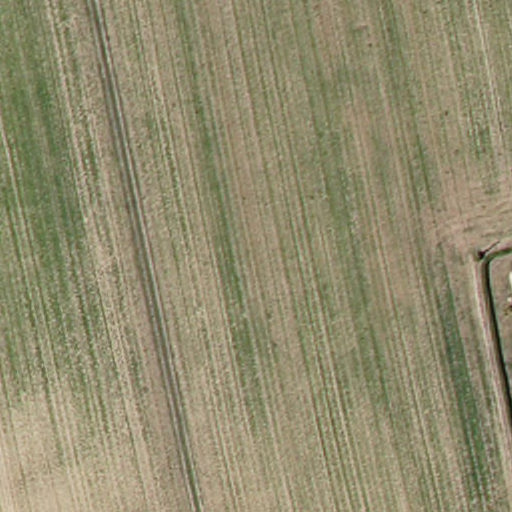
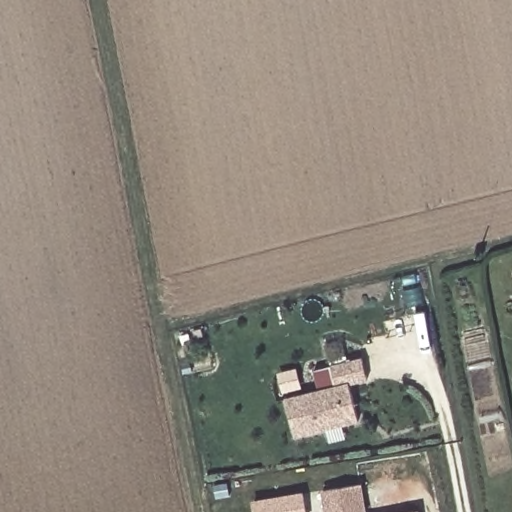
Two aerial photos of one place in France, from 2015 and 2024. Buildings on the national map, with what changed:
new [(335,385),(330,365),(361,357),(367,380),(351,383),(359,420),(294,437),(286,398),(335,385)]
new [(361,485),(366,512),(328,512),(324,490),(361,485)]
new [(303,492),(306,512),(254,512),(252,500),(303,492)]

